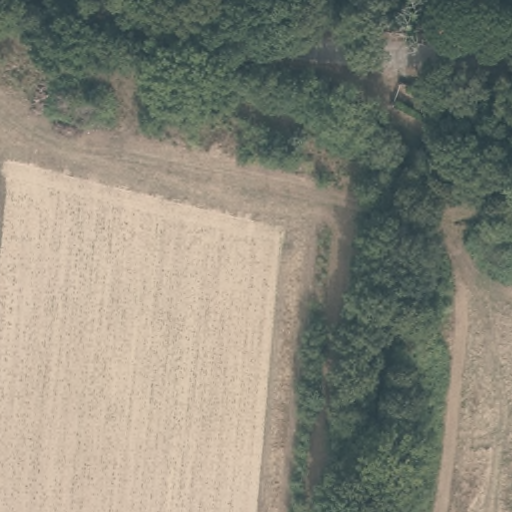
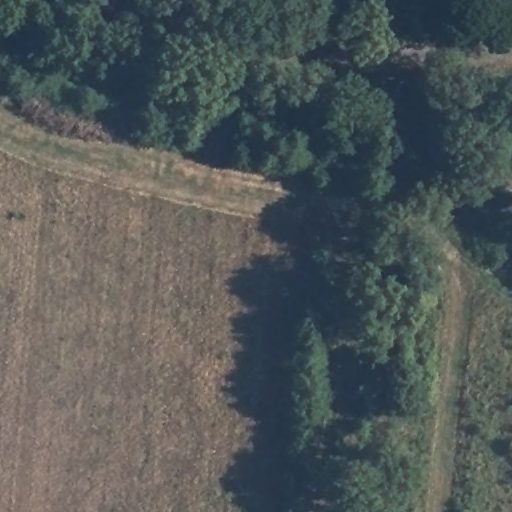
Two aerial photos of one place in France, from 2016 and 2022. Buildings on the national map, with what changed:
[]

